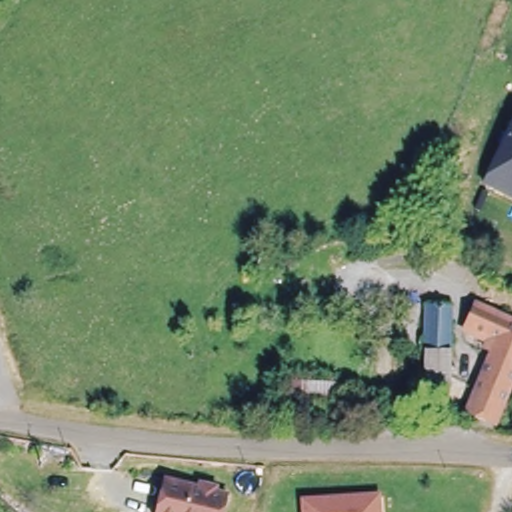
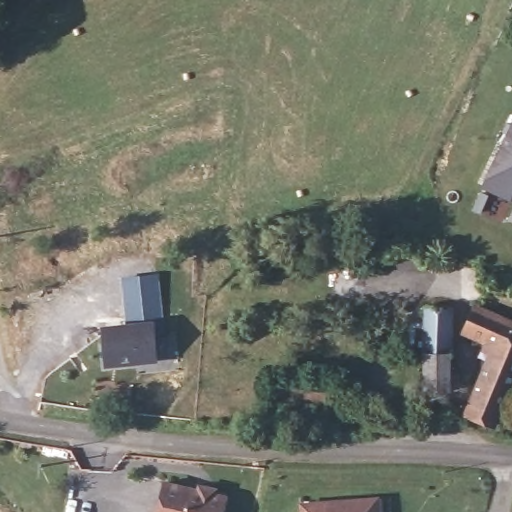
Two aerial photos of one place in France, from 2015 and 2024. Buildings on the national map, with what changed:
unchanged [(512,124),(512,201),(482,186),(512,124)]
new [(120,276),(159,271),(165,319),(154,319),(125,321),(120,276)]
unchanged [(496,343),(465,333),(472,306),(512,319),(512,372),(492,417),(469,406),(496,343)]
unchanged [(452,395),(425,394),(426,317),(454,317),(452,395)]
new [(105,366),(101,324),(154,319),(156,361),(105,366)]
unchanged [(338,420),(283,417),(284,385),(340,387),(338,420)]
unchanged [(195,483),(212,486),(211,492),(224,496),(220,512),(155,512),(160,482),(193,490),(195,483)]
unchanged [(378,500),(379,512),(299,512),(298,504),(378,500)]

